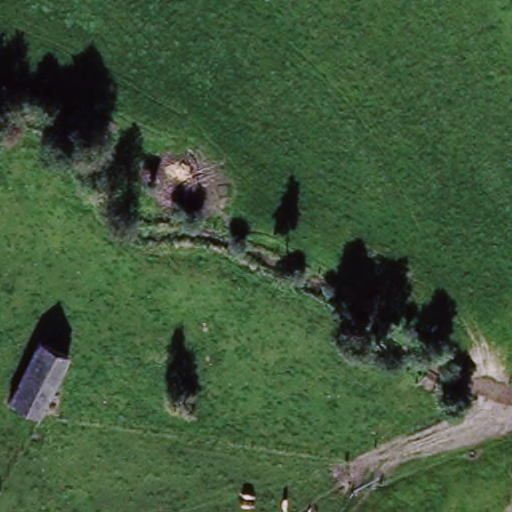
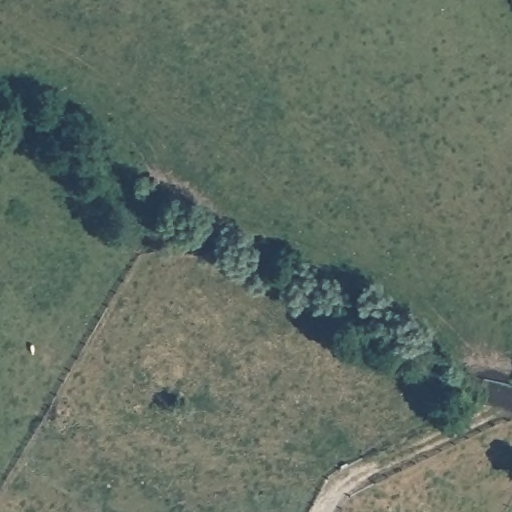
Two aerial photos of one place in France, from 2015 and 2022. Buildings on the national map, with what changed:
demolished [(13,400),(45,342),(72,357),(42,415),(13,400)]

